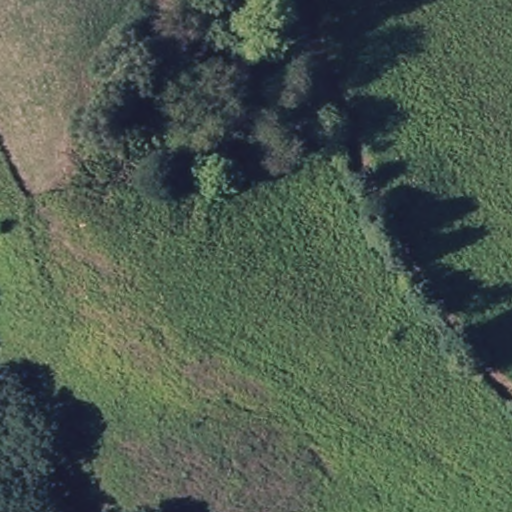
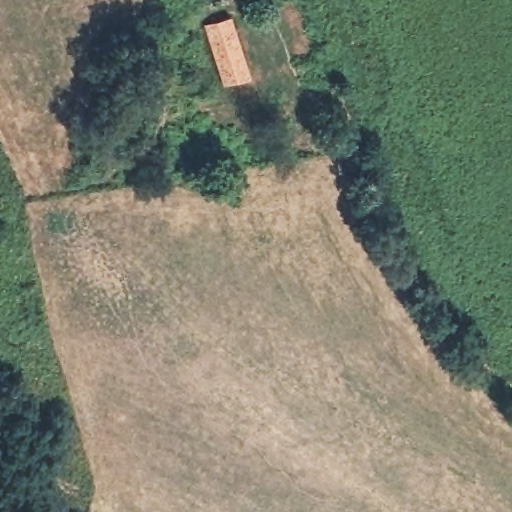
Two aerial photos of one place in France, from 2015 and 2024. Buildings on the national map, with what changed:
new [(209,37),(237,28),(252,76),(224,85),(209,37)]
demolished [(234,36),(252,82),(227,91),(210,45),(234,36)]

